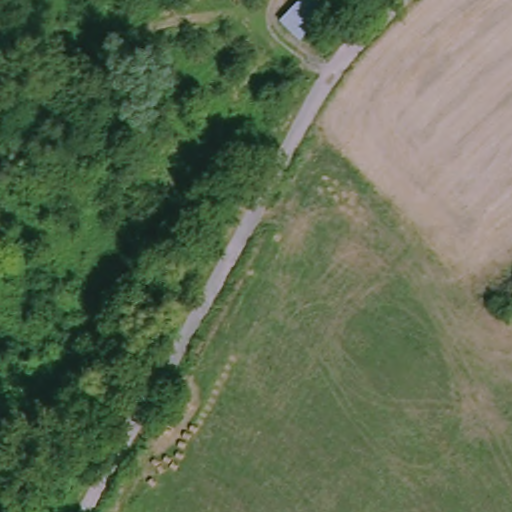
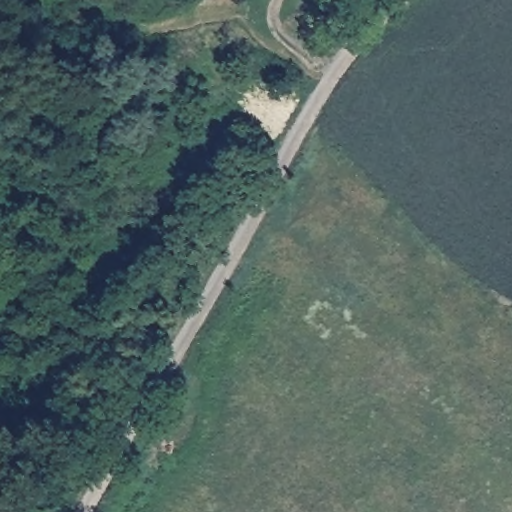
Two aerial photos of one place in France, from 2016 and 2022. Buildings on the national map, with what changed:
unchanged [(295,0),(336,0),(297,42),(276,22),(295,0)]

